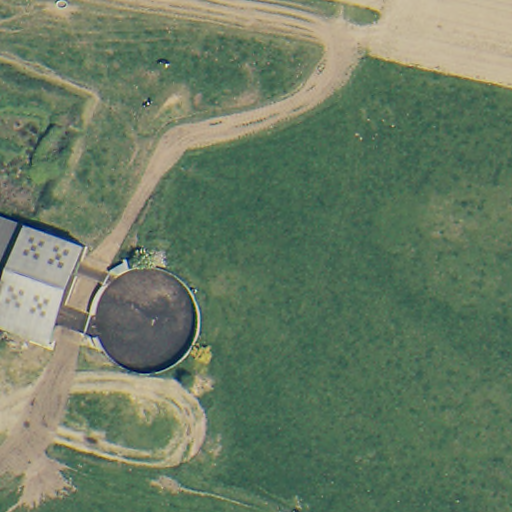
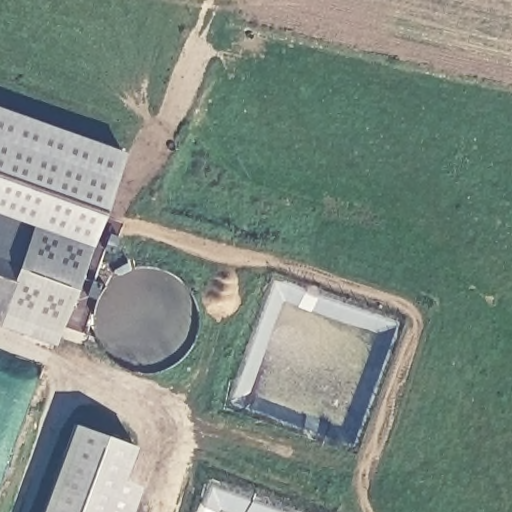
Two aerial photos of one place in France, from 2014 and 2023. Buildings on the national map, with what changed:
new [(36,240),(0,227),(0,107),(120,150),(82,256),(36,240)]
unchanged [(82,256),(47,353),(0,336),(0,227),(82,256)]
new [(73,423),(136,447),(123,481),(141,487),(132,512),(40,512),(73,423)]

